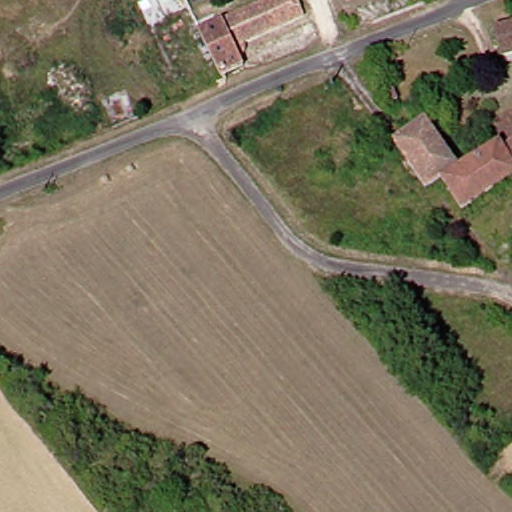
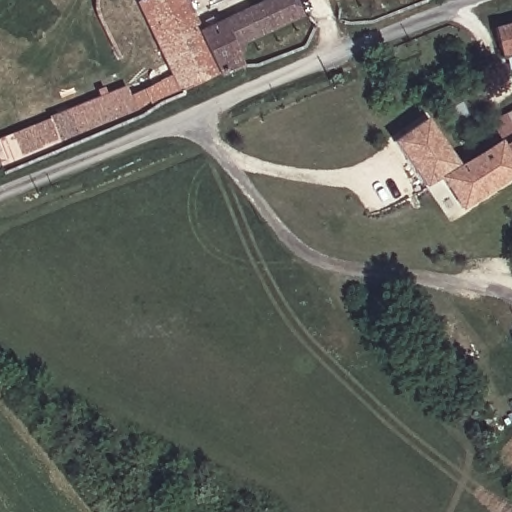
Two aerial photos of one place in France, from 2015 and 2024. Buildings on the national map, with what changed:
new [(203,28),(200,30),(221,77),(140,112),(132,93),(171,75),(137,1),(140,0),(190,0),(203,28)]
unchanged [(200,30),(222,20),(267,0),(298,0),(305,16),(245,43),(245,47),(243,51),(242,53),(240,55),(239,57),(243,66),(221,77),(200,30)]
unchanged [(512,54),(501,56),(495,29),(512,25),(512,54)]
unchanged [(388,88),(401,84),(405,99),(393,103),(388,88)]
new [(140,112),(0,171),(0,137),(127,85),(140,112)]
unchanged [(447,177),(438,183),(431,187),(415,161),(402,141),(407,138),(434,120),(447,141),(463,167),(468,164),(482,155),(504,141),(507,146),(510,144),(499,122),(510,117),(512,116),(512,182),(467,210),(447,177)]

